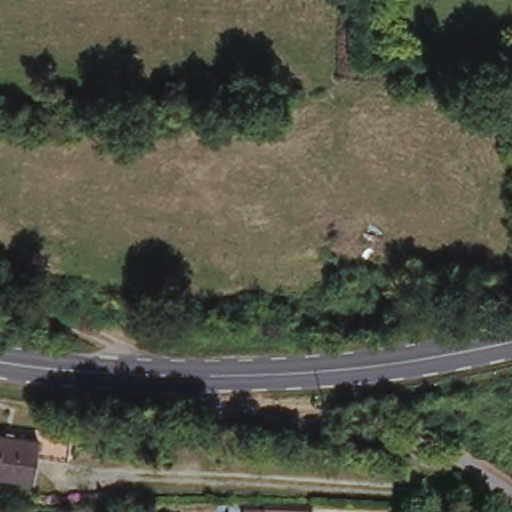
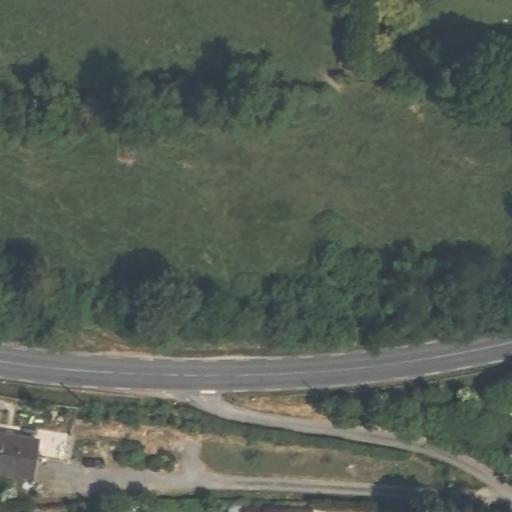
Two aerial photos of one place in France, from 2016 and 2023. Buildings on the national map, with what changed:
unchanged [(73,435),(70,459),(37,454),(35,476),(0,472),(0,432),(39,435),(73,435)]
unchanged [(262,508),(312,509),(311,512),(243,512),(243,508),(262,508)]

